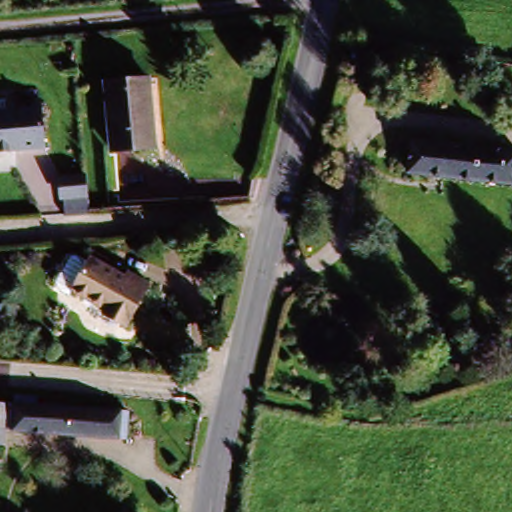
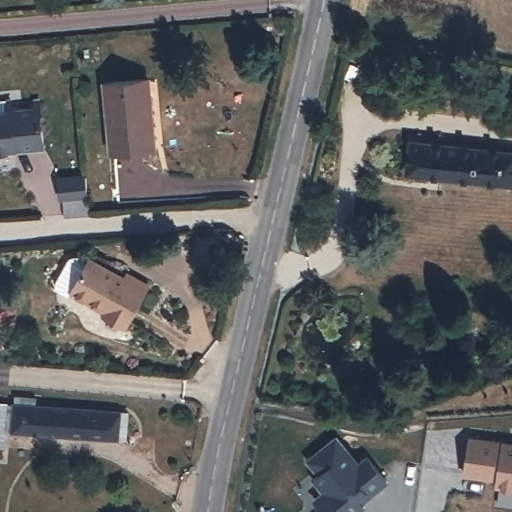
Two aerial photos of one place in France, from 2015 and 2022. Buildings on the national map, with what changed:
unchanged [(106,83),(150,81),(156,151),(111,155),(106,83)]
unchanged [(18,102),(19,112),(47,110),(51,150),(0,154),(0,103),(18,102)]
unchanged [(511,190),(405,176),(410,140),(512,156),(512,182),(511,190)]
unchanged [(66,178),(94,180),(96,217),(68,217),(66,178)]
unchanged [(69,294),(57,288),(55,283),(70,255),(74,253),(87,260),(89,256),(130,280),(133,273),(150,283),(128,328),(103,314),(106,310),(71,291),(69,294)]
unchanged [(121,411),(122,441),(1,438),(0,409),(121,411)]
unchanged [(1,438),(1,456),(0,455),(0,409),(1,438)]
new [(359,460),(367,453),(389,479),(363,502),(365,505),(356,512),(321,512),(311,501),(323,491),(312,477),(317,473),(304,458),(337,432),(359,460)]
new [(492,486),(492,481),(463,476),(469,436),(512,441),(512,489),(492,486)]

